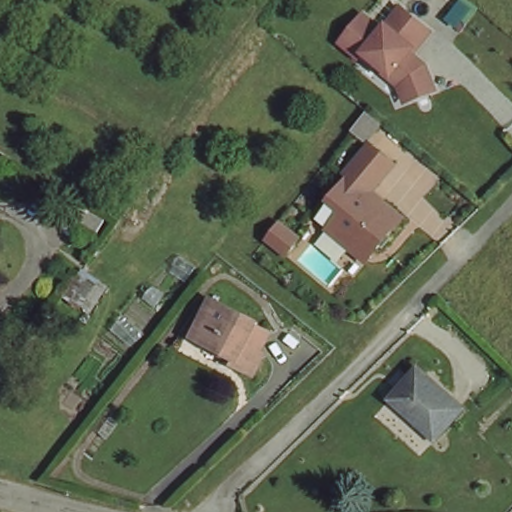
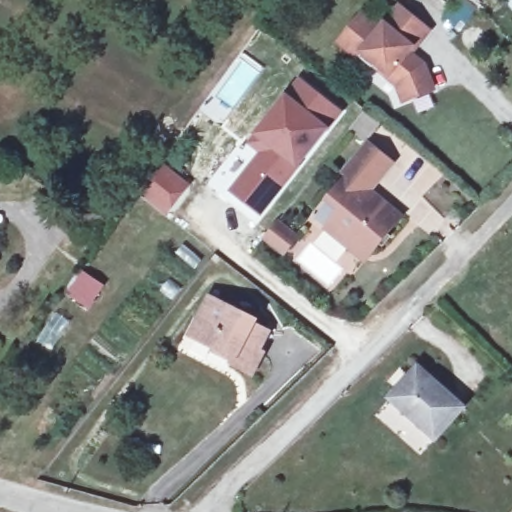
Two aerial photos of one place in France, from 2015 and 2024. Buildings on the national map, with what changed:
unchanged [(398,99),(389,78),(332,39),(354,5),(375,18),(388,0),(398,0),(433,25),(411,48),(426,57),(434,85),(398,99)]
new [(257,154),(247,146),(254,135),(283,96),(300,79),(343,113),(329,130),(296,171),(260,221),(227,192),(257,154)]
unchanged [(368,265),(323,229),(325,226),(316,219),(328,203),(325,201),(367,144),(350,131),(368,110),(384,124),(370,142),(399,166),(378,191),(408,217),(368,265)]
new [(189,186),(169,215),(143,195),(161,166),(189,186)]
unchanged [(105,214),(93,238),(63,221),(75,198),(105,214)]
new [(281,228),(300,243),(285,263),(265,247),(281,228)]
unchanged [(99,279),(82,304),(57,286),(75,261),(99,279)]
unchanged [(245,323),(270,336),(262,350),(268,353),(255,375),(225,358),(228,353),(187,332),(196,316),(191,313),(202,291),(247,315),(245,323)]
unchanged [(439,438),(393,395),(421,365),(468,407),(439,438)]

